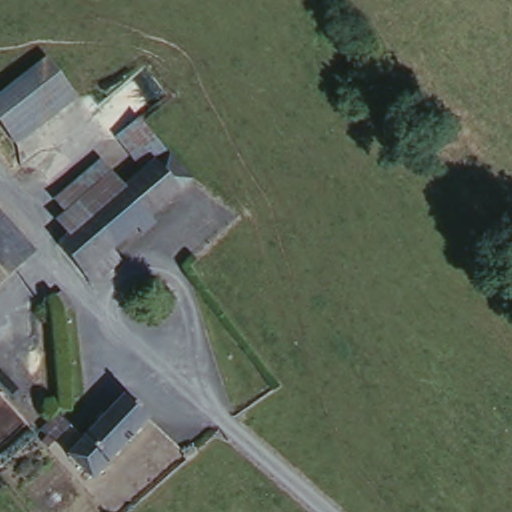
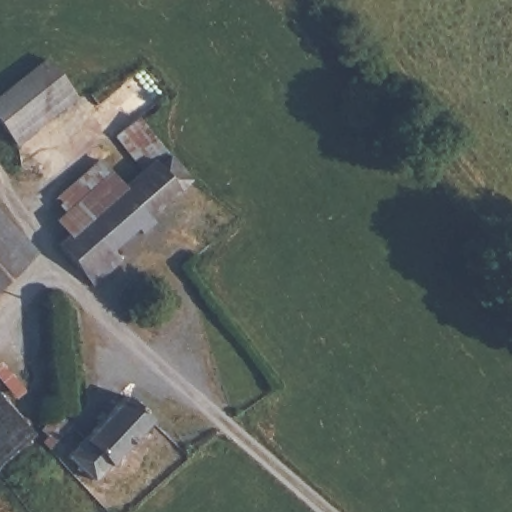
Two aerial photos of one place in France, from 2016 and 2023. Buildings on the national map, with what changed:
unchanged [(43,61),(78,100),(24,147),(0,119),(0,98),(43,61)]
unchanged [(147,173),(122,143),(133,133),(146,122),(177,159),(200,186),(187,195),(115,251),(124,263),(94,285),(60,244),(147,173)]
unchanged [(67,238),(54,221),(65,213),(52,198),(100,159),(125,191),(67,238)]
unchanged [(2,228),(36,266),(0,298),(0,230),(2,228)]
unchanged [(59,397),(75,416),(65,425),(45,442),(28,422),(49,406),(59,397)]
unchanged [(156,426),(92,479),(69,450),(132,397),(156,426)]

